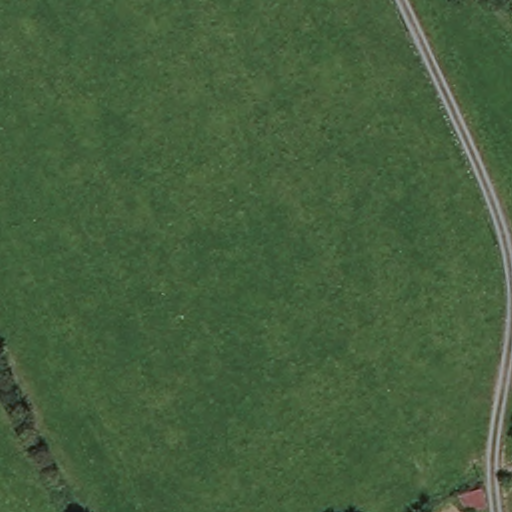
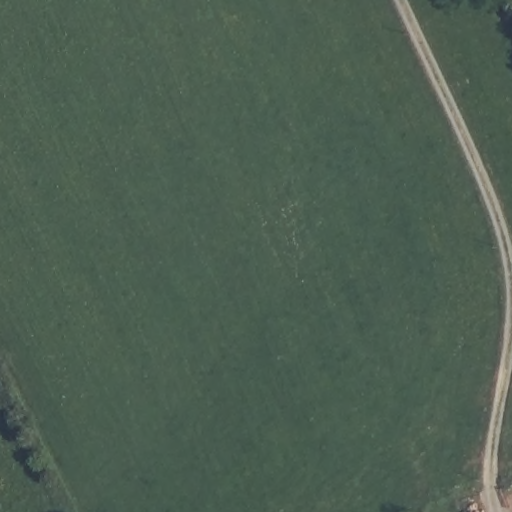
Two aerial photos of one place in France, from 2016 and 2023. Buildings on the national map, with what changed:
[]

